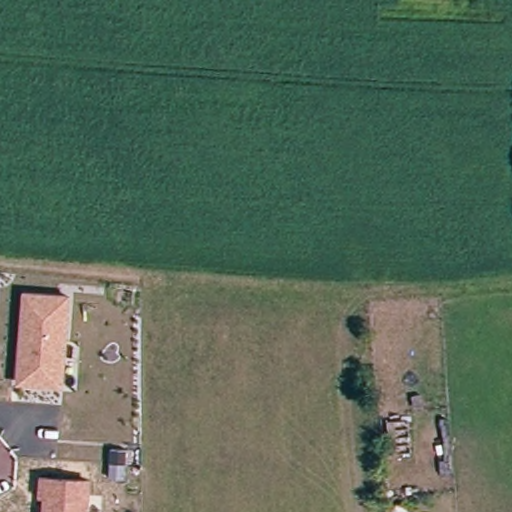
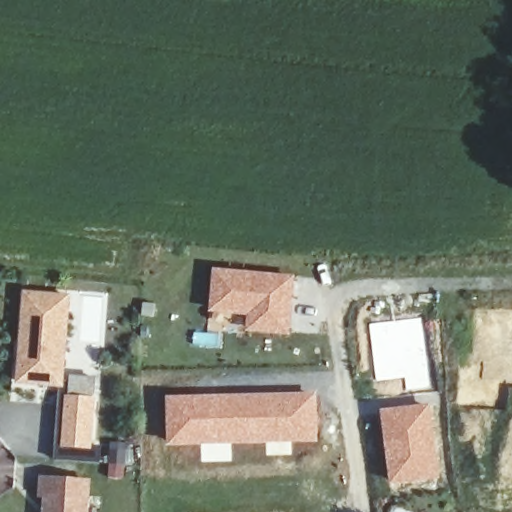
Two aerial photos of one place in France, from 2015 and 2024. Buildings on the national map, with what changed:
new [(212,267),(294,275),(289,336),(244,331),(246,316),(208,312),(212,267)]
unchanged [(36,384),(18,382),(21,350),(21,345),(25,294),(68,297),(63,373),(62,386),(36,384)]
new [(374,328),(376,338),(389,336),(388,326),(384,325),(384,322),(422,317),(431,388),(404,391),(403,378),(389,380),(389,367),(379,365),(380,375),(375,375),(370,329),(374,328)]
new [(317,392),(318,444),(292,444),(293,455),(265,455),(265,444),(232,445),(232,462),(201,463),(200,445),(166,447),(165,396),(317,392)]
new [(97,398),(95,445),(104,445),(103,465),(54,462),(60,396),(97,398)]
new [(430,404),(440,480),(388,486),(379,409),(430,404)]
unchanged [(126,451),(125,465),(111,464),(112,450),(126,451)]
unchanged [(46,512),(47,498),(41,498),(43,481),(90,484),(87,512),(46,512)]

